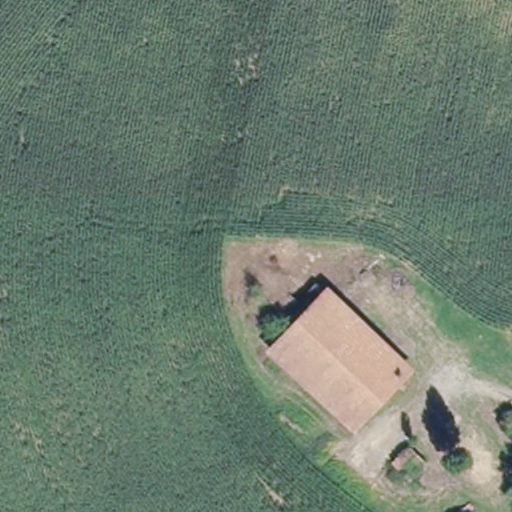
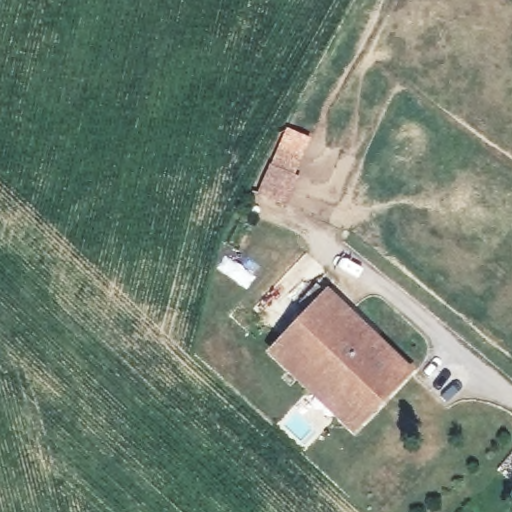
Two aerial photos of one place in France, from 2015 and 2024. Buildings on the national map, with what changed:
new [(279,145),(303,156),(294,174),(300,177),(287,206),(257,193),(279,145)]
unchanged [(309,312),(303,305),(322,285),(411,367),(357,426),(277,352),(309,312)]
unchanged [(388,467),(402,449),(420,465),(406,484),(388,467)]

